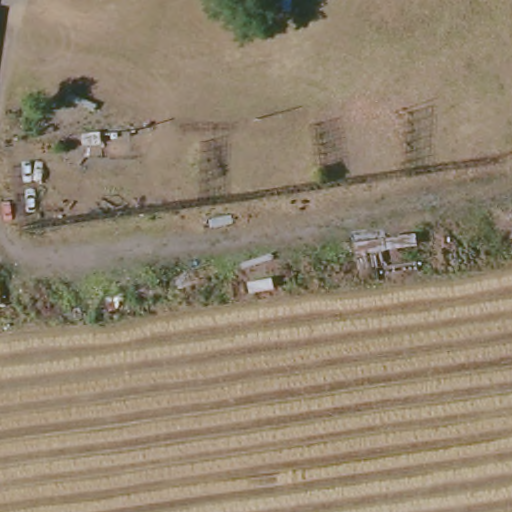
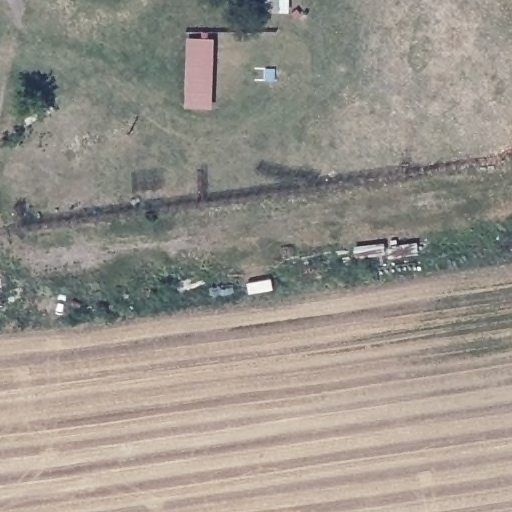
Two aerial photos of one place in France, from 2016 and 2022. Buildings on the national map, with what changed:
unchanged [(270,8),(270,0),(282,0),(282,9),(270,8)]
new [(189,38),(216,38),(213,108),(186,109),(189,38)]

